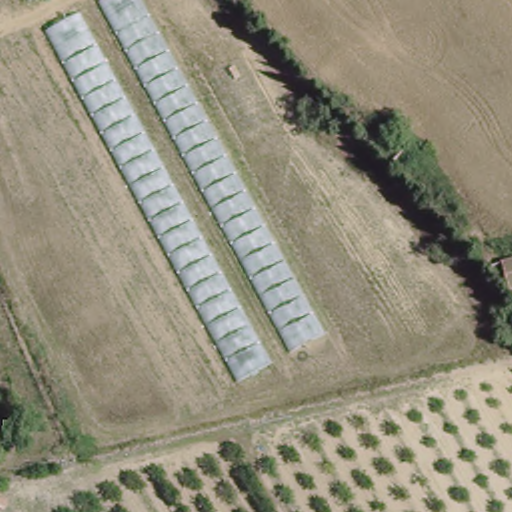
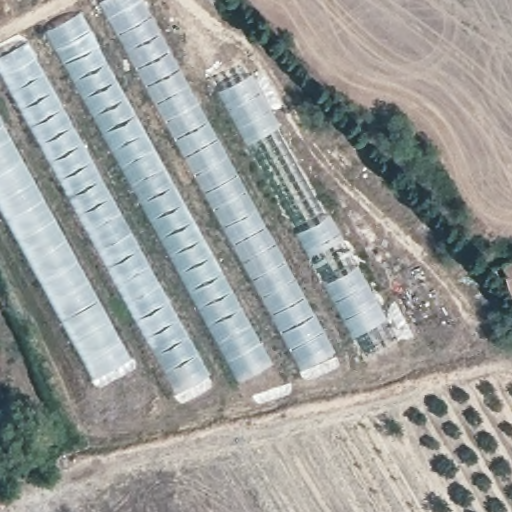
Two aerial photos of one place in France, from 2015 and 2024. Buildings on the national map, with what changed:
unchanged [(107,0),(140,0),(323,335),(297,352),(103,2),(107,0)]
unchanged [(78,15),(268,366),(240,382),(50,30),(78,15)]
new [(175,394),(0,74),(0,56),(25,44),(209,377),(175,394)]
new [(397,342),(363,360),(210,79),(243,60),(397,342)]
new [(0,116),(130,361),(95,379),(0,201),(0,116)]
unchanged [(512,257),(512,289),(508,290),(500,260),(512,257)]

